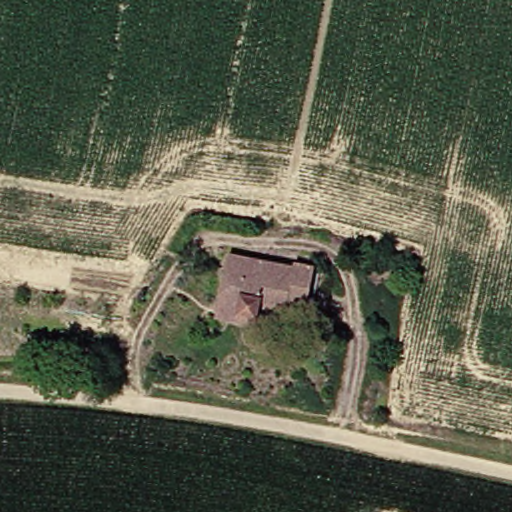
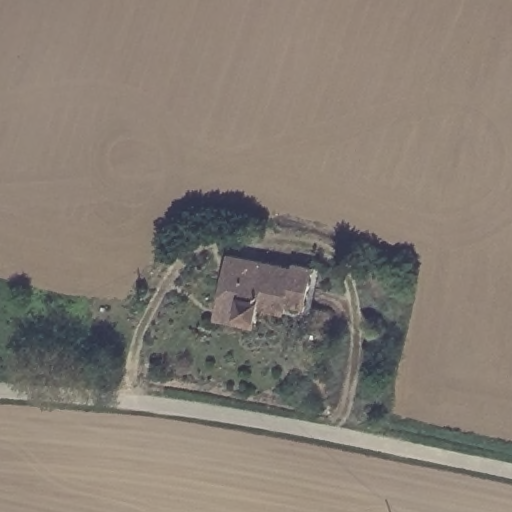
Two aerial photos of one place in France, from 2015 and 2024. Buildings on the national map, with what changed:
unchanged [(284,298),(279,315),(253,309),(249,319),(211,309),(218,256),(278,271),(284,262),(309,264),(303,297),(284,298)]

